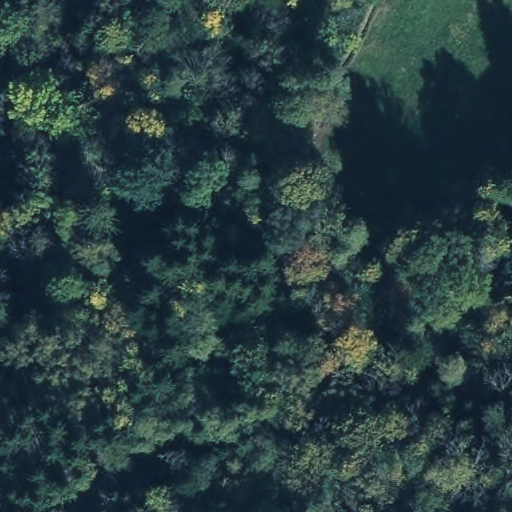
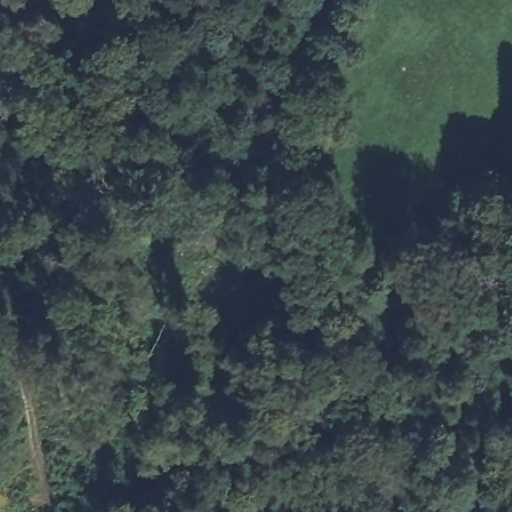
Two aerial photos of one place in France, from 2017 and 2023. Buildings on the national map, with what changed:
unchanged [(77,253),(82,257),(76,266),(69,259),(77,253)]

